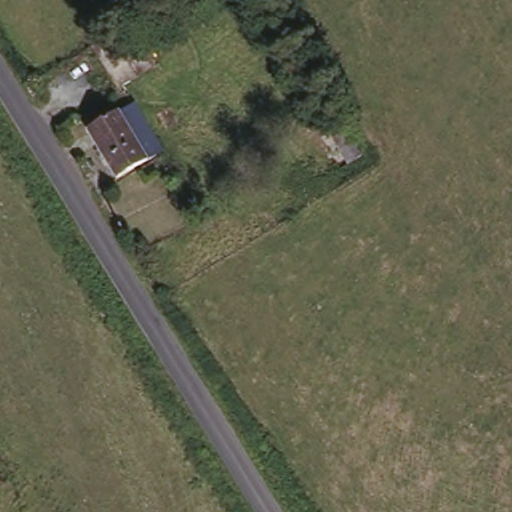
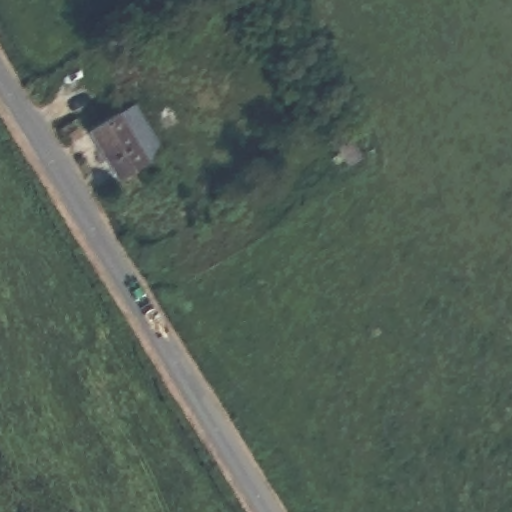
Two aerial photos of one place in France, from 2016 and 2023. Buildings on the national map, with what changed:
unchanged [(100,60),(86,70),(76,51),(89,43),(100,60)]
unchanged [(117,117),(133,106),(159,151),(112,182),(81,131),(113,110),(117,117)]
unchanged [(340,158),(325,167),(302,129),(317,120),(340,158)]

